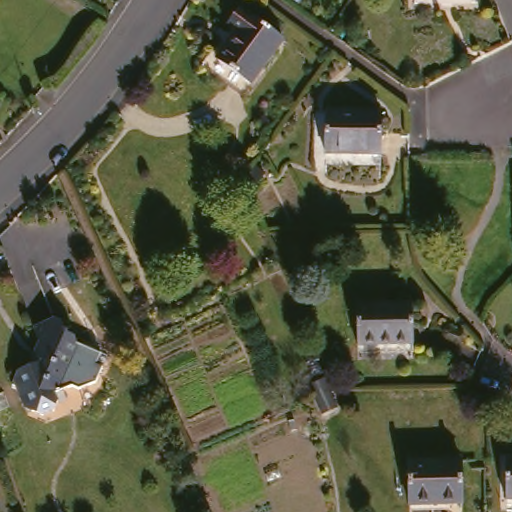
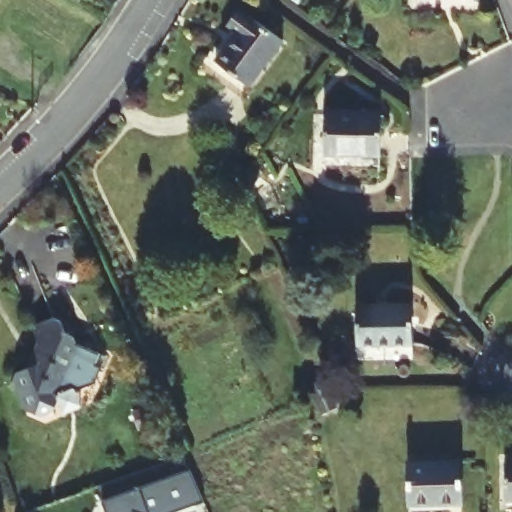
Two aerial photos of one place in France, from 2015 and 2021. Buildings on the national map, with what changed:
unchanged [(217,59),(238,31),(229,25),(242,8),(283,39),(251,84),(217,59)]
unchanged [(321,154),(322,111),(376,112),(376,155),(321,154)]
unchanged [(244,180),(254,165),(263,171),(253,186),(244,180)]
unchanged [(357,345),(357,305),(412,303),(412,344),(357,345)]
unchanged [(79,386),(73,381),(54,390),(58,400),(53,410),(39,417),(25,411),(16,390),(2,383),(8,369),(35,357),(39,349),(26,321),(47,311),(57,316),(62,328),(71,331),(75,339),(107,352),(96,378),(79,386)]
unchanged [(409,500),(407,458),(459,457),(460,498),(409,500)]
unchanged [(505,461),(512,461),(512,501),(506,501),(505,461)]
new [(190,469),(204,500),(205,501),(182,512),(107,512),(105,507),(190,469)]

